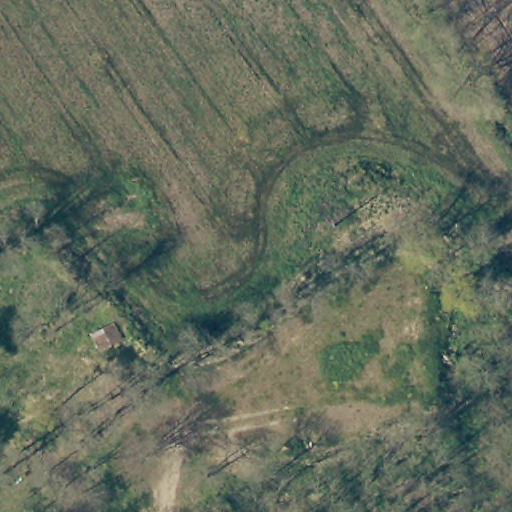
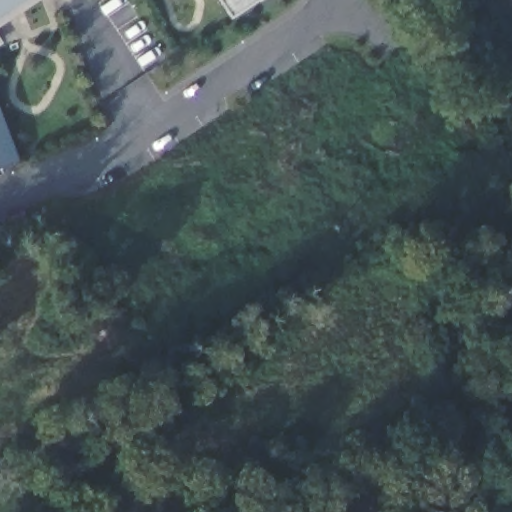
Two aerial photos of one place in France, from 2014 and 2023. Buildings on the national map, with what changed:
new [(0,27),(0,0),(41,0),(0,27)]
new [(232,18),(220,0),(260,0),(232,18)]
new [(19,160),(0,168),(0,111),(19,160)]

